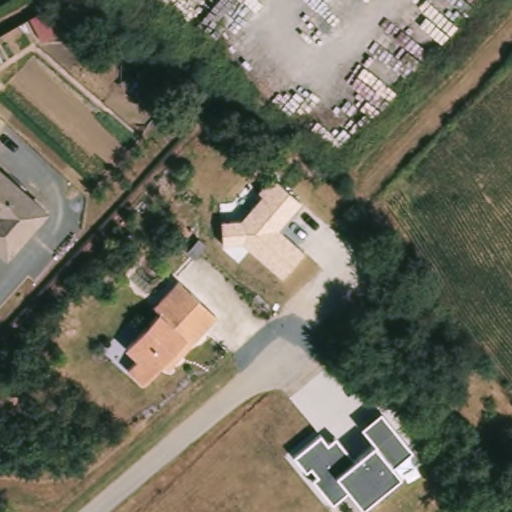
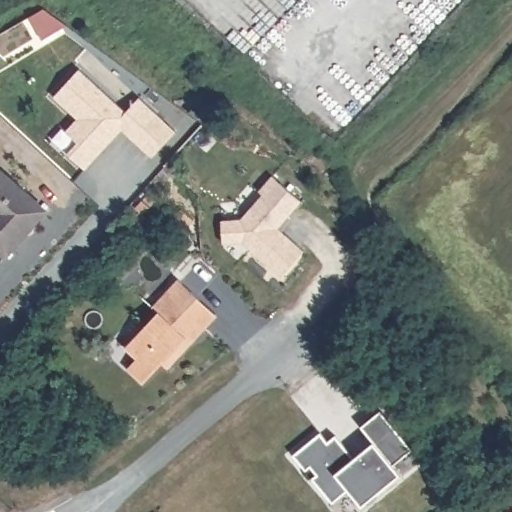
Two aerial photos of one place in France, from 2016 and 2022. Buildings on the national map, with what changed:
unchanged [(68,25),(44,39),(30,16),(45,8),(68,25)]
new [(156,158),(144,147),(126,130),(89,170),(71,154),(82,143),(70,132),(82,119),(58,97),(83,70),(130,113),(143,99),(167,121),(180,132),(156,158)]
unchanged [(14,260),(0,246),(0,166),(54,216),(14,260)]
unchanged [(242,244),(220,246),(219,220),(242,218),(261,194),(257,192),(271,176),(301,203),(277,231),(302,252),(279,276),(242,244)]
unchanged [(157,363),(139,383),(123,368),(132,357),(121,347),(153,312),(147,307),(174,279),(196,300),(212,315),(201,327),(175,355),(163,368),(157,363)]
unchanged [(370,442),(357,427),(377,411),(402,442),(408,450),(389,465),(397,474),(357,506),(345,490),(328,503),(308,478),(312,474),(306,467),(302,470),(289,455),(316,433),(323,442),(331,435),(345,452),(350,458),(370,442)]

